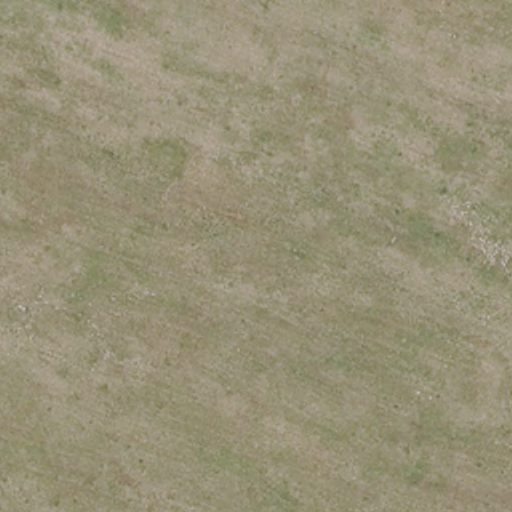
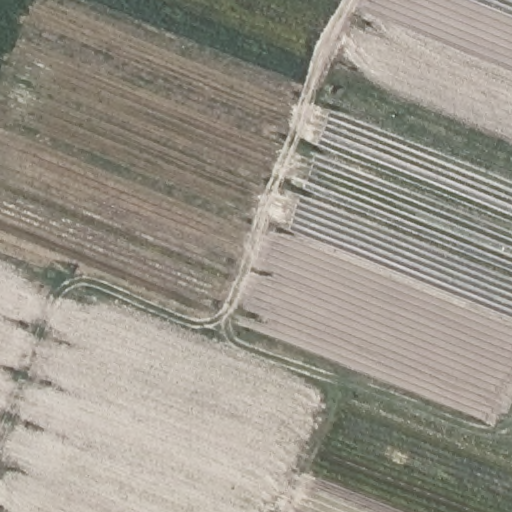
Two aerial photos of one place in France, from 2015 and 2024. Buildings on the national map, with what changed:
[]

